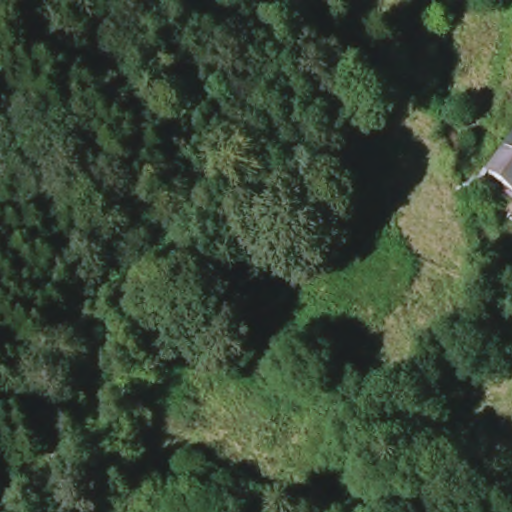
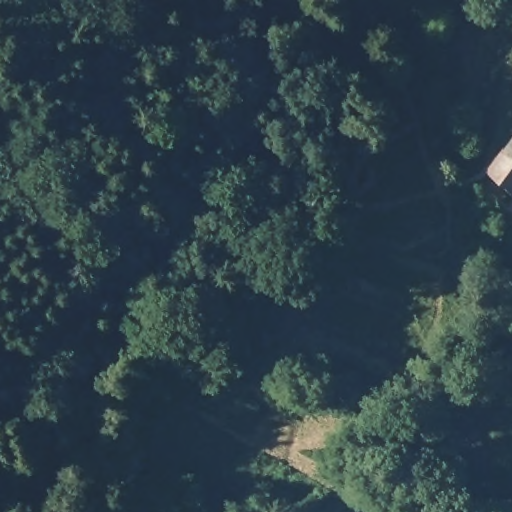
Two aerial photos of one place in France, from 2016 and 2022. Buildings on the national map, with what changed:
unchanged [(486,171),(512,136),(512,191),(486,171)]

